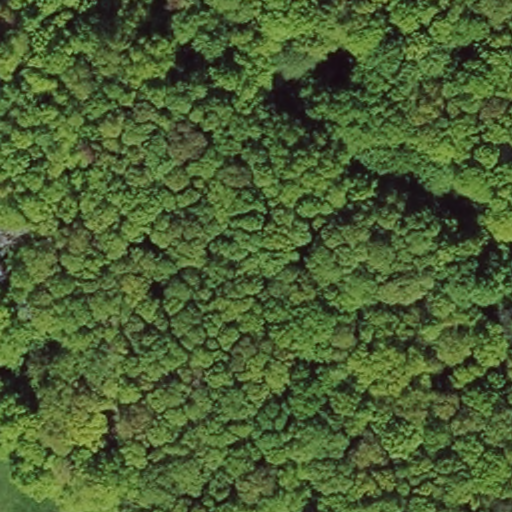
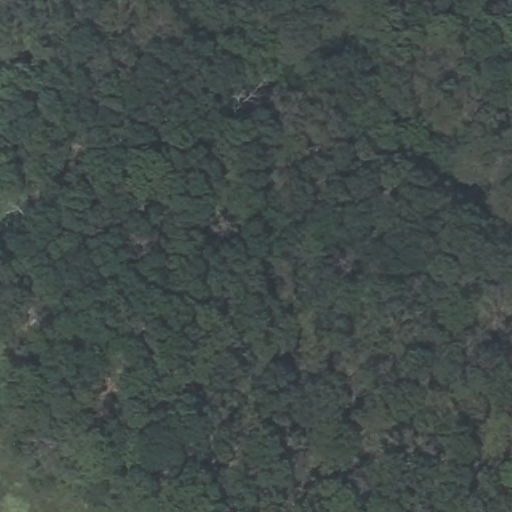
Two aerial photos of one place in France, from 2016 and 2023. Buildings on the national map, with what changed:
unchanged [(31,284),(78,307),(23,407),(0,396),(0,385),(33,325),(17,310),(31,284)]

